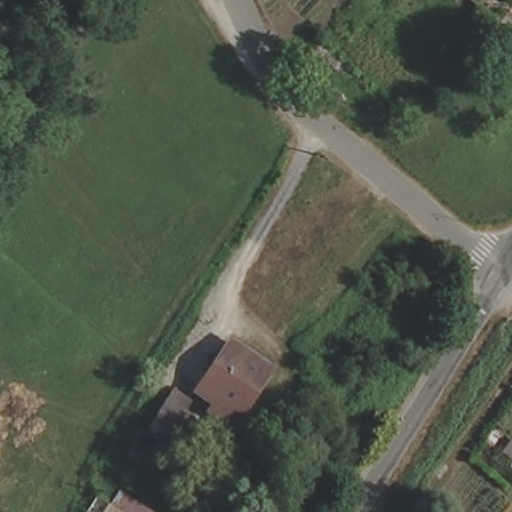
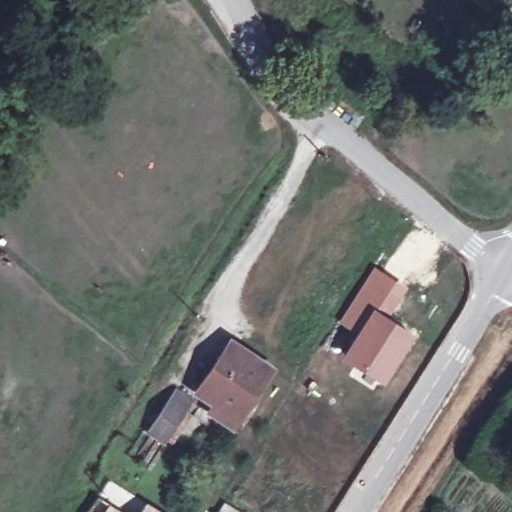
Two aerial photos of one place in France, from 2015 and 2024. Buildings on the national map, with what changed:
new [(374,265),(409,288),(389,316),(374,306),(356,333),(338,322),(374,265)]
new [(356,333),(374,306),(389,316),(413,332),(381,381),(343,357),(356,333)]
unchanged [(275,372),(255,402),(249,398),(236,418),(201,395),(234,345),(275,372)]
unchanged [(197,403),(171,442),(154,431),(180,392),(197,403)]
new [(86,512),(96,497),(118,510),(116,512),(86,512)]
unchanged [(133,512),(116,512),(121,505),(133,512)]

